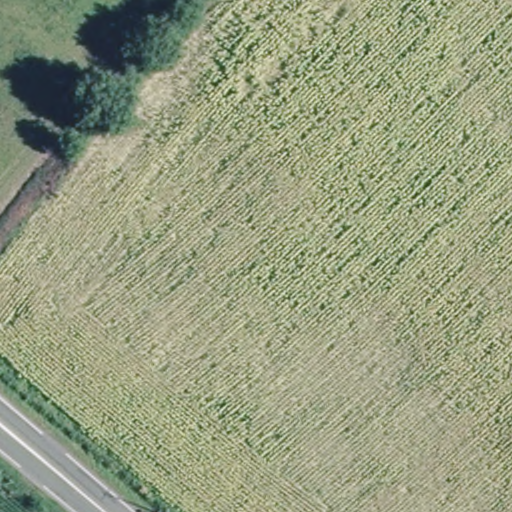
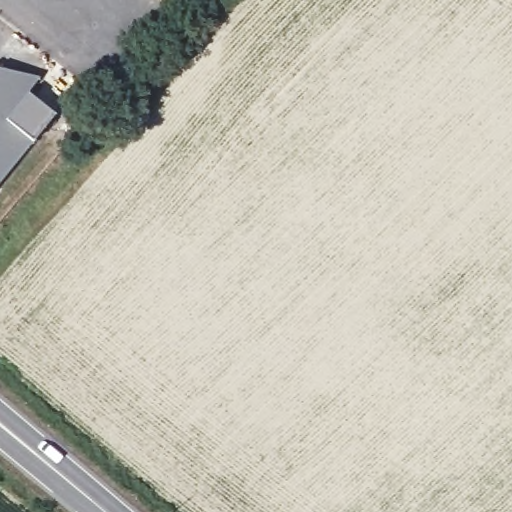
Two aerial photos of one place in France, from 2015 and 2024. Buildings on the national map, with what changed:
new [(25,94),(54,116),(0,182),(0,70),(39,79),(25,94)]

